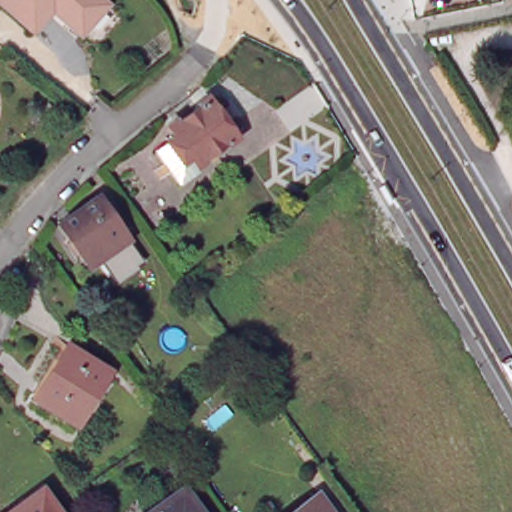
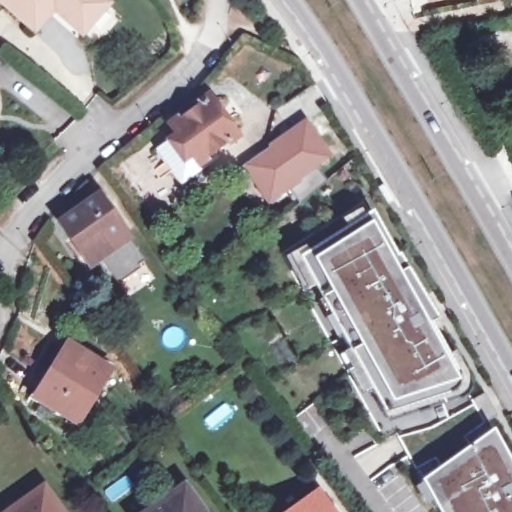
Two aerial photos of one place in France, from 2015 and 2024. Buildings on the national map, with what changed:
unchanged [(48,4),(32,22),(6,0),(52,0),(48,4)]
unchanged [(57,0),(100,0),(82,22),(57,0)]
unchanged [(180,138),(174,128),(183,122),(185,125),(206,110),(205,107),(214,100),(242,142),(235,148),(232,145),(210,161),(212,163),(203,169),(197,161),(189,167),(173,145),(180,138)]
new [(329,155),(315,165),(327,181),(300,203),(288,187),(269,200),(244,165),(305,122),(329,155)]
unchanged [(85,253),(62,222),(100,195),(130,237),(101,257),(92,263),(85,253)]
new [(370,211),(395,258),(398,256),(435,321),(430,324),(447,355),(453,352),(465,375),(467,380),(470,385),(469,389),(464,396),(457,401),(387,422),(385,418),(298,258),(370,211)]
unchanged [(68,343),(108,369),(77,421),(36,394),(68,343)]
new [(491,430),(512,468),(512,512),(437,512),(420,481),(491,430)]
unchanged [(204,512),(147,512),(184,485),(204,512)]
unchanged [(57,512),(15,512),(42,492),(57,512)]
unchanged [(329,512),(292,512),(316,495),(329,512)]

